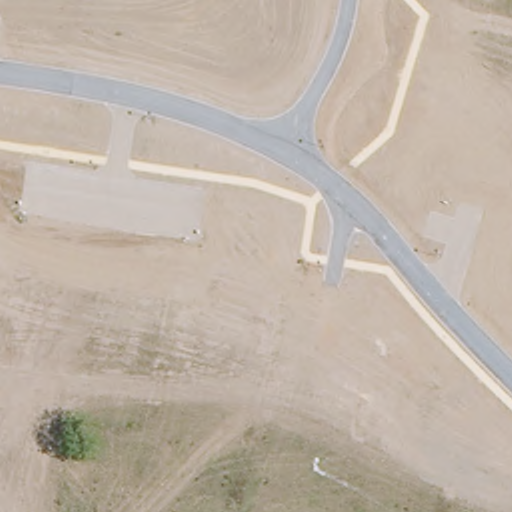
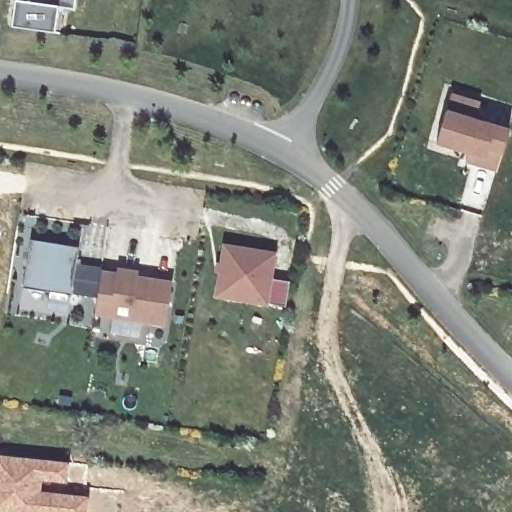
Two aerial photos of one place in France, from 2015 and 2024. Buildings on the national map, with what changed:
new [(59,7),(55,32),(12,27),(17,0),(34,2),(34,0),(77,0),(76,8),(59,7)]
new [(496,172),(465,164),(469,155),(436,145),(446,111),(508,129),(496,172)]
new [(72,296),(25,288),(31,240),(77,248),(72,296)]
new [(276,252),(267,306),(214,297),(218,274),(214,273),(215,263),(220,264),(222,244),(276,252)]
new [(166,325),(95,316),(102,270),(117,271),(117,266),(138,270),(137,275),(172,280),(166,325)]
new [(62,484),(37,481),(35,496),(84,501),(82,512),(0,512),(0,458),(65,465),(62,484)]

